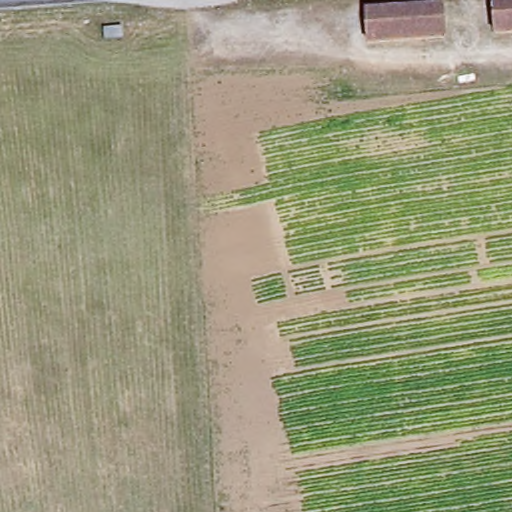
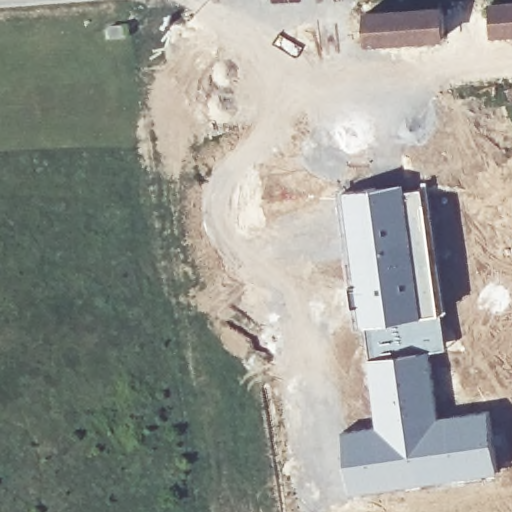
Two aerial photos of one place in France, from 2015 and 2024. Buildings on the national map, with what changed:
unchanged [(494,33),(493,1),(506,0),(512,0),(512,32),(494,33)]
unchanged [(444,36),(369,43),(366,13),(441,6),(444,36)]
unchanged [(124,22),(124,33),(104,34),(105,22),(124,22)]
new [(407,180),(408,186),(426,183),(444,311),(365,323),(357,283),(343,188),(407,180)]
new [(444,311),(448,349),(432,351),(369,356),(365,323),(444,311)]
new [(377,424),(369,356),(432,351),(442,414),(491,407),(500,471),(354,492),(344,431),(377,424)]

